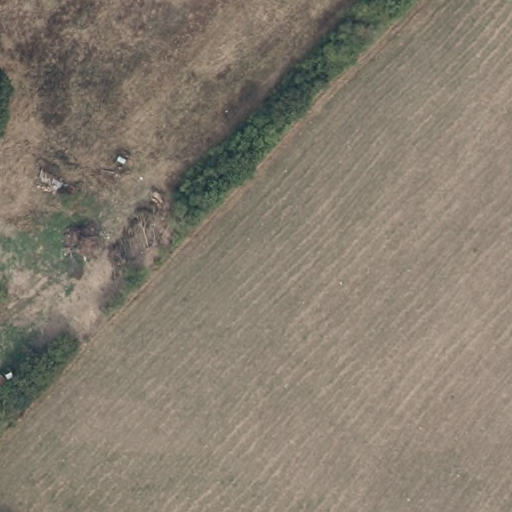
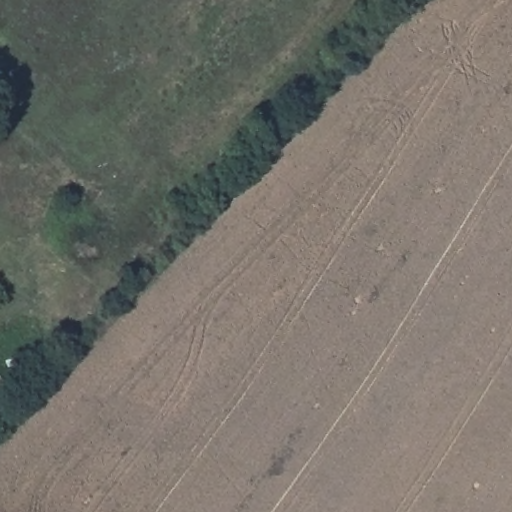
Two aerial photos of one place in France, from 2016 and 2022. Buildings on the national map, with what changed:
unchanged [(0,403),(0,382),(10,390),(0,403)]

